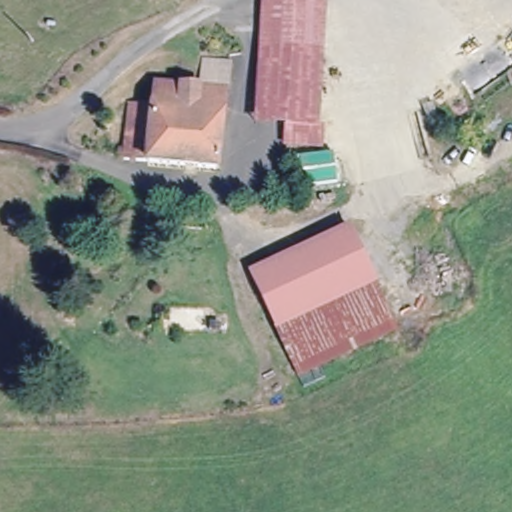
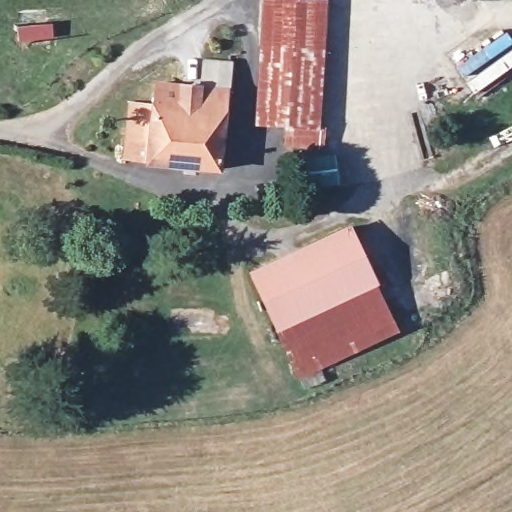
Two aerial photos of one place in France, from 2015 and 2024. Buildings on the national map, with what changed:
unchanged [(255,123),(263,0),(323,0),(321,50),(290,48),(285,124),(255,123)]
unchanged [(319,124),(312,124),(309,145),(286,144),(285,124),(290,48),(321,50),(319,124)]
unchanged [(234,64),(221,170),(124,153),(131,98),(155,100),(157,78),(201,82),(205,59),(234,64)]
unchanged [(253,253),(361,224),(392,327),(287,358),(253,253)]

